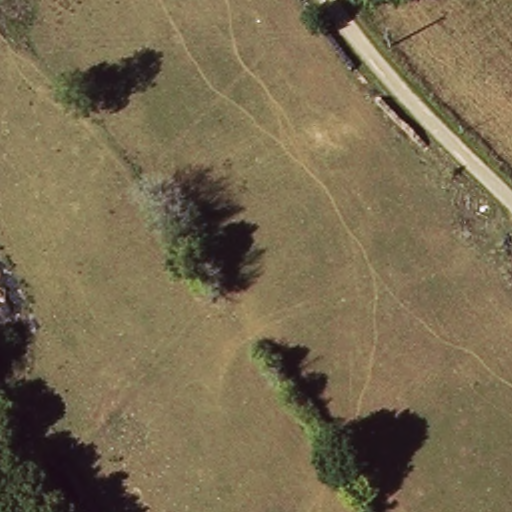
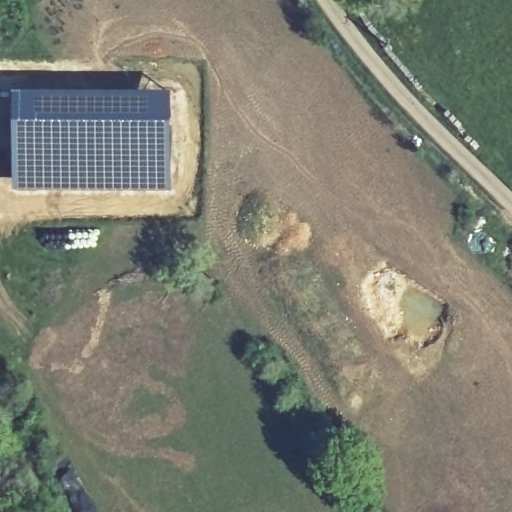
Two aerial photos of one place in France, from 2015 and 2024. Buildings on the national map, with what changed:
new [(12,90),(173,90),(173,194),(12,193),(12,90)]

